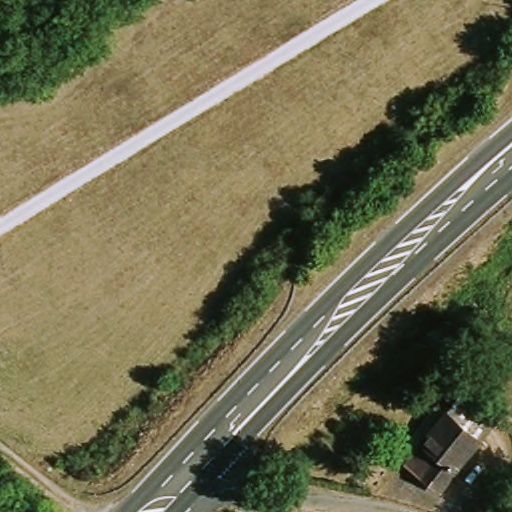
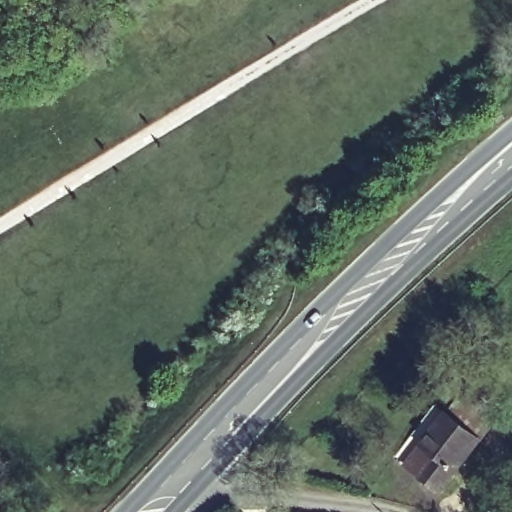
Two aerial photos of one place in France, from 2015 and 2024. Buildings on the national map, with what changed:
unchanged [(413,444),(457,384),(484,413),(432,486),(415,474),(399,463),(413,444)]

